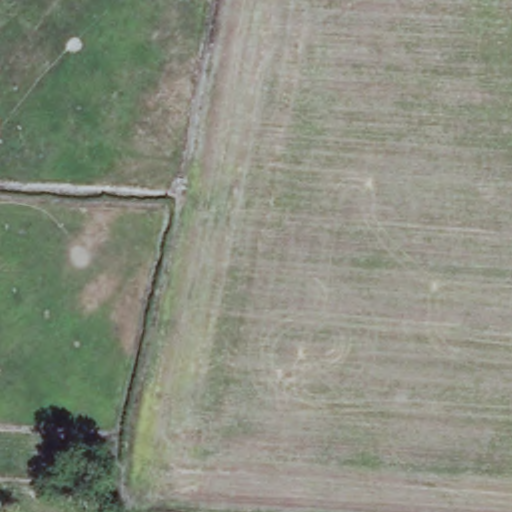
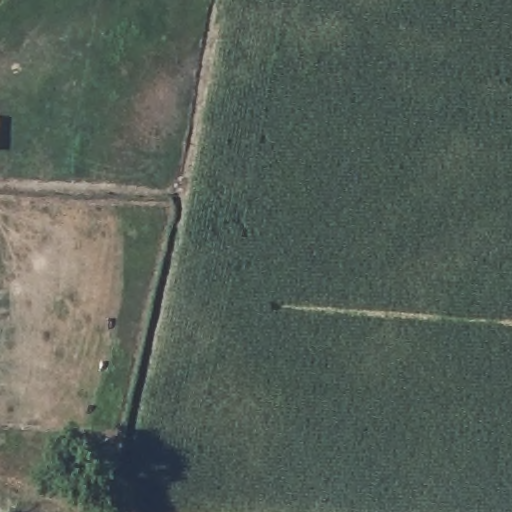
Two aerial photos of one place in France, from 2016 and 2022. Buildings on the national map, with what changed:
[]

